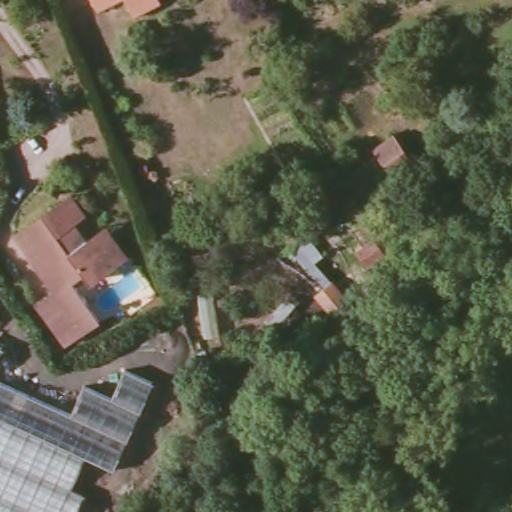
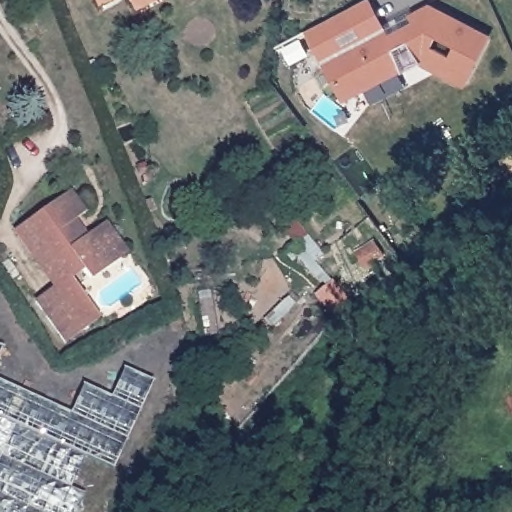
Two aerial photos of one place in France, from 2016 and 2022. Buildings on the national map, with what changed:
unchanged [(89,0),(114,0),(93,9),(89,0)]
unchanged [(129,15),(121,0),(150,0),(152,4),(129,15)]
new [(344,102),(306,32),(368,0),(371,0),(389,34),(415,20),(410,14),(430,4),(492,35),(465,87),(422,64),(344,102)]
demolished [(392,176),(371,148),(393,133),(411,155),(392,176)]
unchanged [(79,270),(67,278),(95,319),(62,342),(32,301),(52,287),(13,233),(57,202),(67,195),(80,213),(70,221),(81,237),(98,225),(105,234),(119,254),(86,279),(79,270)]
unchanged [(367,264),(359,253),(365,249),(373,261),(367,264)]
unchanged [(335,314),(317,294),(332,281),(350,302),(335,314)]
unchanged [(0,384),(68,415),(81,386),(108,399),(122,370),(150,383),(110,470),(80,457),(66,489),(80,495),(72,512),(0,512),(0,384)]

